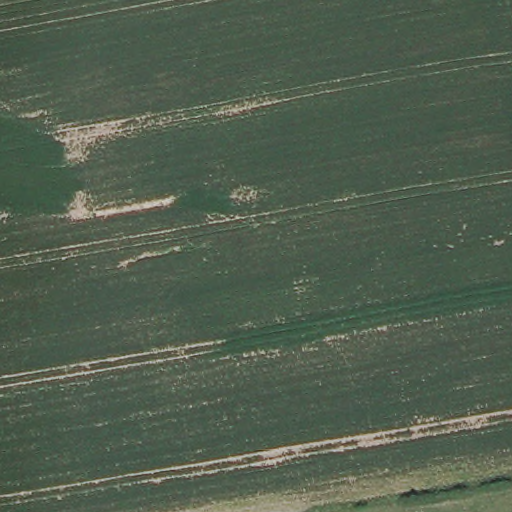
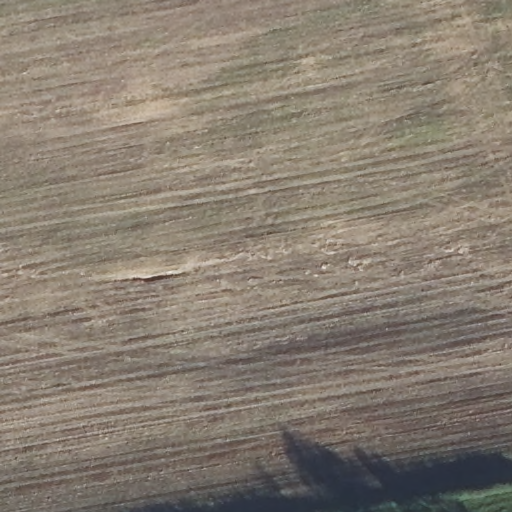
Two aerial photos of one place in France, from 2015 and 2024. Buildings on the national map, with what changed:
[]

